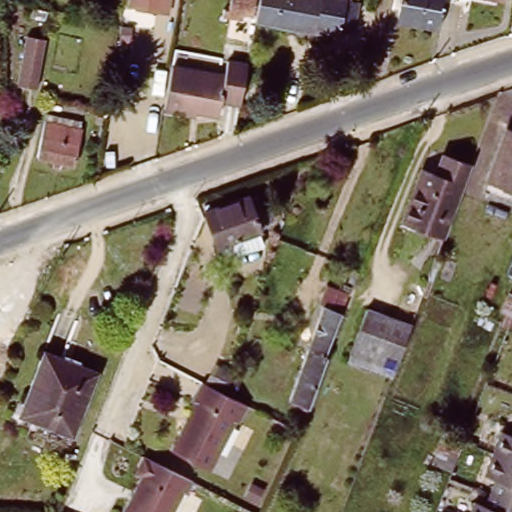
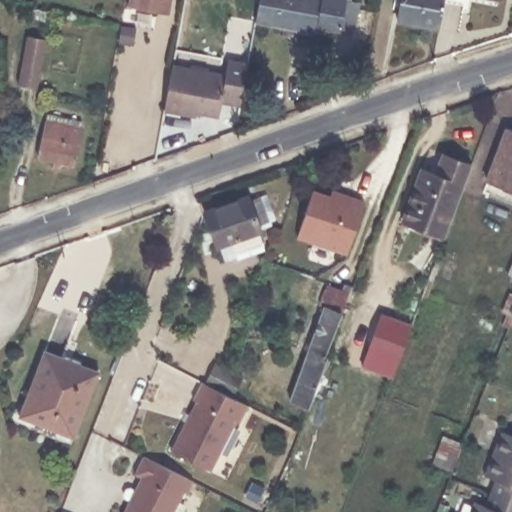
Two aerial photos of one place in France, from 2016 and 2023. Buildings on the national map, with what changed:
unchanged [(153,9),(134,5),(135,0),(155,0),(153,9)]
unchanged [(252,20),(228,16),(231,0),(251,0),(256,1),(252,20)]
unchanged [(290,32),(255,26),(260,1),(260,0),(296,0),(290,32)]
unchanged [(359,4),(352,35),(317,30),(316,36),(290,32),(296,0),(350,0),(350,2),(359,4)]
unchanged [(438,27),(396,20),(400,0),(443,0),(438,27)]
unchanged [(35,89),(17,86),(27,31),(37,32),(35,39),(44,41),(35,89)]
unchanged [(214,82),(217,67),(225,68),(228,54),(247,57),(240,98),(220,94),(217,109),(182,103),(187,78),(214,82)]
unchanged [(172,59),(217,67),(214,82),(187,78),(182,103),(181,108),(163,104),(172,59)]
unchanged [(68,164),(32,157),(39,121),(61,126),(62,119),(75,121),(73,129),(76,129),(68,164)]
unchanged [(487,177),(506,125),(512,128),(512,184),(511,186),(487,177)]
unchanged [(441,238),(399,220),(425,157),(437,162),(445,141),(473,152),(441,238)]
unchanged [(512,187),(511,186),(512,184),(512,187)]
new [(348,254),(297,239),(312,189),(330,194),(333,189),(365,201),(348,254)]
unchanged [(245,190),(257,223),(255,224),(261,239),(237,247),(235,241),(220,246),(218,240),(216,240),(203,205),(245,190)]
unchanged [(282,399),(318,306),(313,305),(320,285),(335,291),(338,283),(340,283),(347,269),(352,271),(347,286),(345,285),(335,312),(317,356),(319,357),(300,405),(282,399)]
unchanged [(365,303),(408,320),(387,375),(343,359),(365,303)]
unchanged [(60,359),(62,354),(89,366),(87,370),(95,373),(72,436),(17,416),(42,352),(60,359)]
unchanged [(182,407),(191,390),(198,394),(208,375),(217,379),(223,382),(232,386),(222,405),(237,413),(229,430),(226,429),(204,474),(163,454),(185,409),(182,407)]
unchanged [(484,504),(490,491),(495,477),(482,472),(499,430),(511,434),(512,431),(512,512),(467,512),(472,499),(484,504)]
unchanged [(441,440),(460,447),(449,476),(430,468),(441,440)]
unchanged [(182,492),(180,490),(169,512),(119,512),(136,477),(130,474),(138,456),(188,480),(182,492)]

